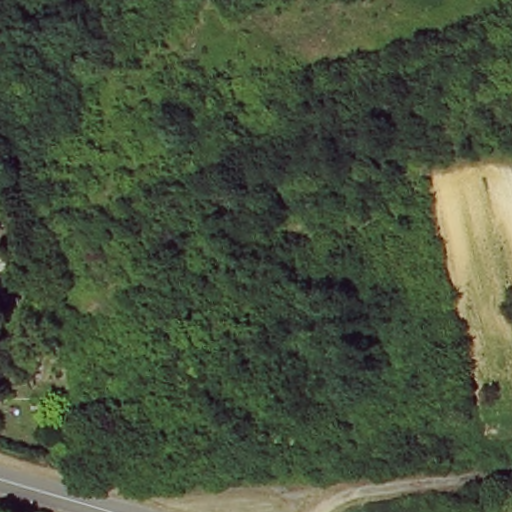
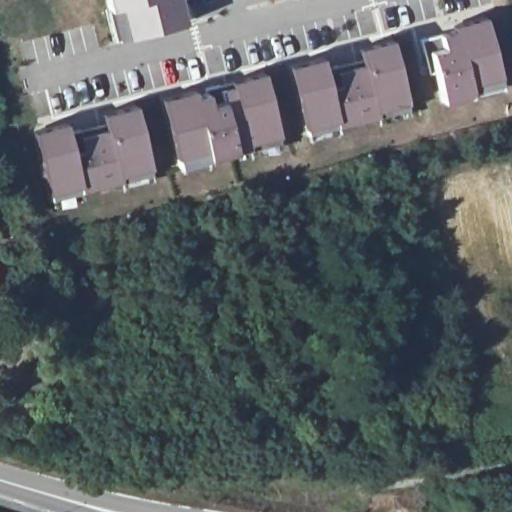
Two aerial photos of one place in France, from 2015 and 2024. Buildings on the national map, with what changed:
new [(184,23),(116,40),(116,39),(126,36),(119,8),(109,11),(108,9),(106,0),(178,0),(184,23)]
new [(420,40),(439,35),(455,32),(453,27),(484,19),(500,84),(499,85),(497,77),(469,84),(472,94),(441,102),(430,53),(429,52),(429,53),(434,73),(428,74),(423,54),(420,40)]
new [(306,125),(308,135),(307,135),(290,67),(321,59),(323,69),(337,66),(362,60),(364,65),(360,49),(390,42),(408,110),(406,110),(404,100),(375,107),(378,117),(337,128),(334,117),(306,125)]
new [(206,94),(205,89),(263,75),(280,143),(279,143),(276,133),(248,140),(250,150),(210,161),(209,161),(206,150),(178,158),(180,168),(179,168),(162,100),(193,92),(194,97),(195,97),(206,94)]
new [(34,132),(65,125),(67,134),(80,131),(82,137),(108,131),(104,115),(134,107),(151,175),(150,175),(148,165),(119,172),(122,183),(81,193),(78,183),(49,190),(52,200),(51,200),(49,191),(34,132)]
new [(82,137),(80,131),(106,124),(108,131),(107,131),(82,137)]

